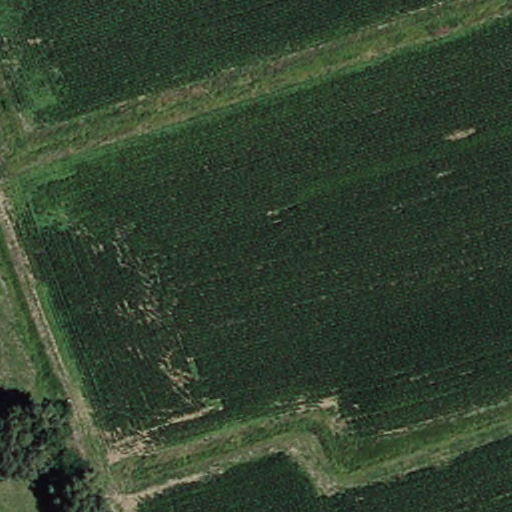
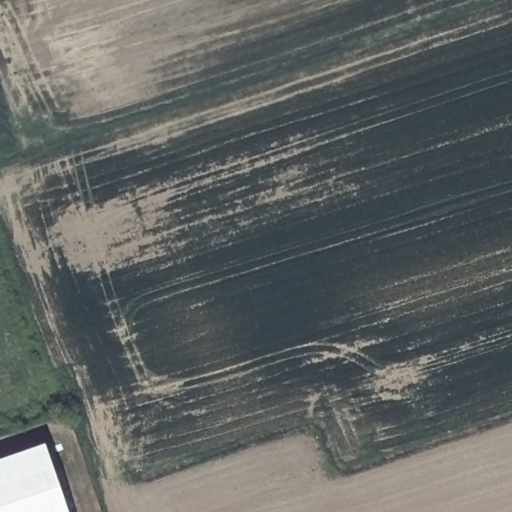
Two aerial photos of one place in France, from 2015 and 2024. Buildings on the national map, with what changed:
new [(68,512),(0,512),(0,465),(46,449),(68,512)]

